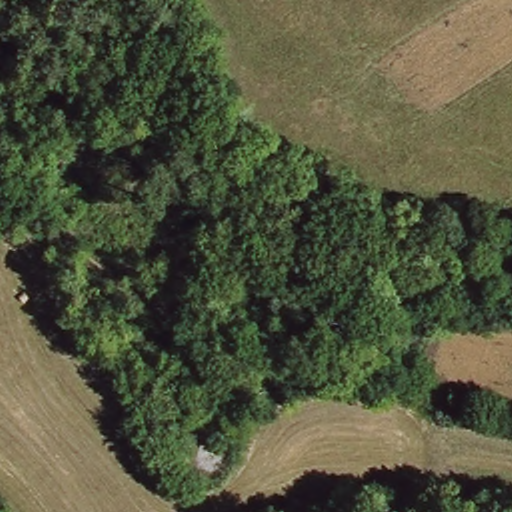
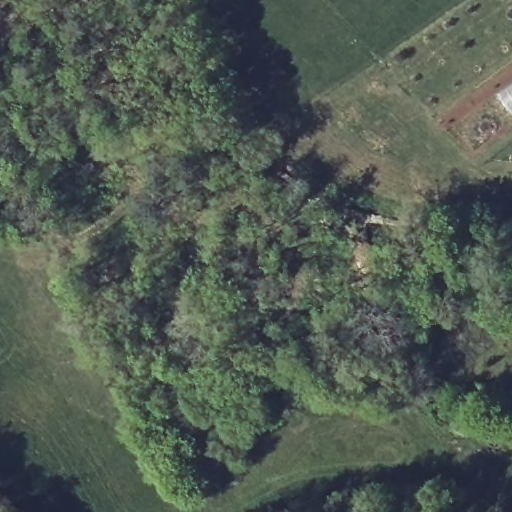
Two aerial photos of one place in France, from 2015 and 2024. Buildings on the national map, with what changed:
[]

